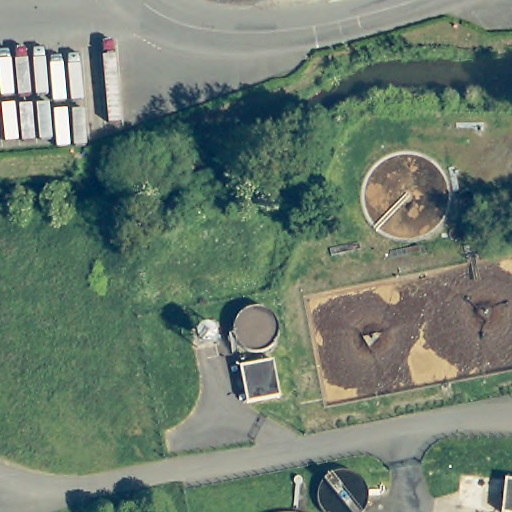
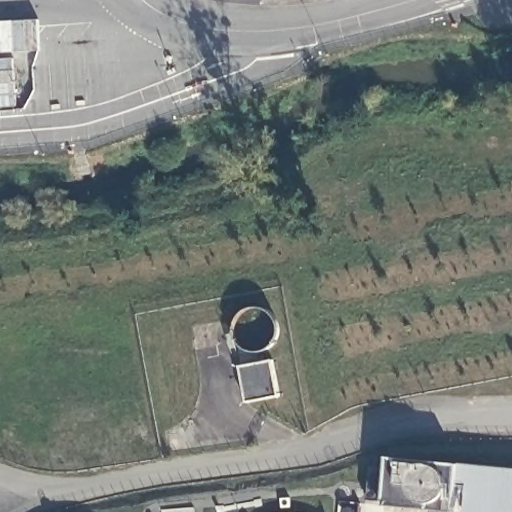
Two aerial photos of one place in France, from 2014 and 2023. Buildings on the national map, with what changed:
unchanged [(272,360),(279,395),(247,401),(240,366),(272,360)]
new [(460,512),(383,504),(388,455),(512,468),(512,512),(460,512)]
demolished [(502,512),(503,492),(505,478),(512,479),(512,512),(502,512)]

